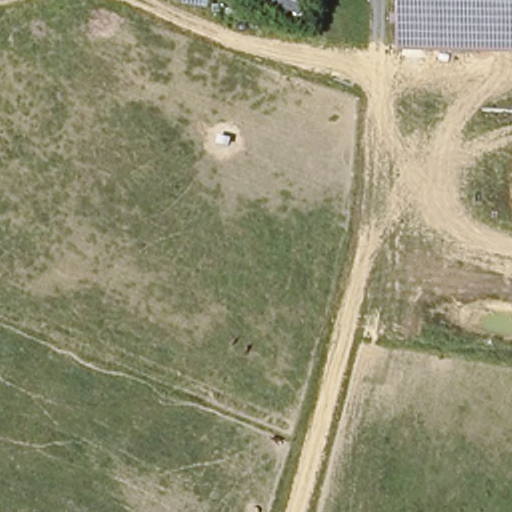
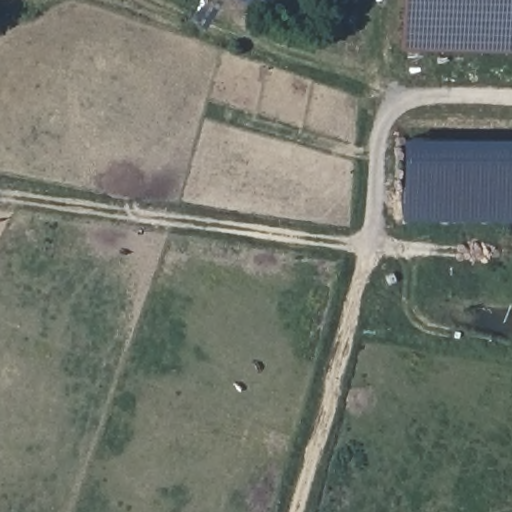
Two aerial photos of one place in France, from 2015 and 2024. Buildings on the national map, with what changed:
unchanged [(512,0),(512,53),(400,51),(401,0),(512,0)]
new [(512,140),(512,220),(405,220),(405,139),(512,140)]

